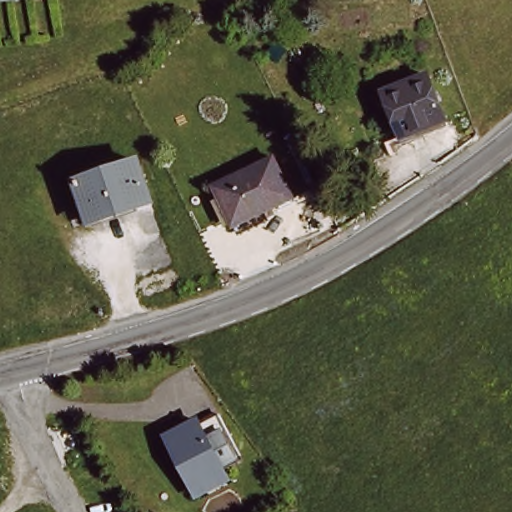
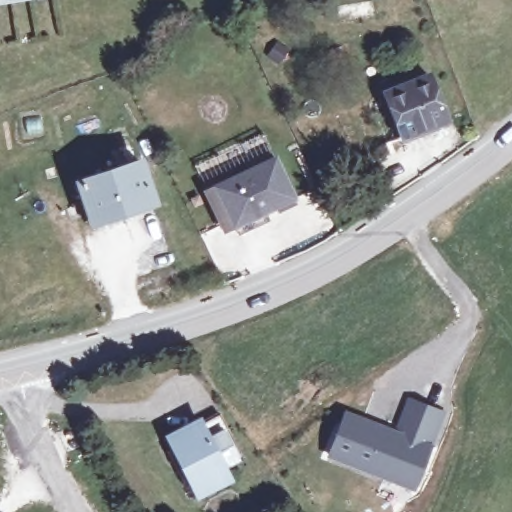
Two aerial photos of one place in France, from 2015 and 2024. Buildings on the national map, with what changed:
unchanged [(0,3),(0,0),(17,0),(0,3)]
unchanged [(441,115),(444,122),(401,139),(398,131),(381,90),(424,72),(441,115)]
unchanged [(216,204),(222,201),(216,187),(276,159),(296,199),(235,228),(232,221),(226,225),(216,204)]
unchanged [(141,164),(153,204),(94,223),(80,184),(141,164)]
new [(413,488),(329,455),(345,416),(384,430),(388,422),(398,425),(409,400),(442,413),(413,488)]
unchanged [(221,405),(242,446),(223,456),(228,467),(199,481),(173,430),(221,405)]

